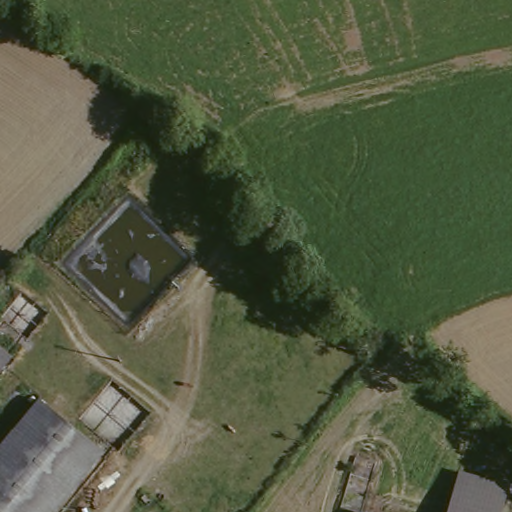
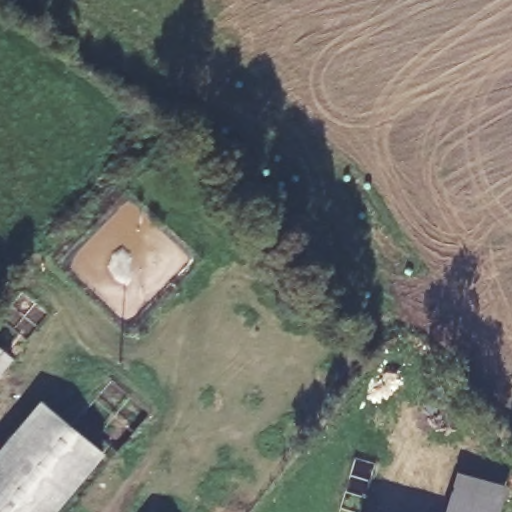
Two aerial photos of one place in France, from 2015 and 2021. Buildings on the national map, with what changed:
unchanged [(0,376),(0,349),(14,360),(0,376)]
unchanged [(44,401),(105,450),(55,512),(0,512),(0,450),(2,451),(44,401)]
unchanged [(452,512),(461,473),(510,485),(504,512),(452,512)]
unchanged [(390,512),(377,512),(378,509),(390,512)]

